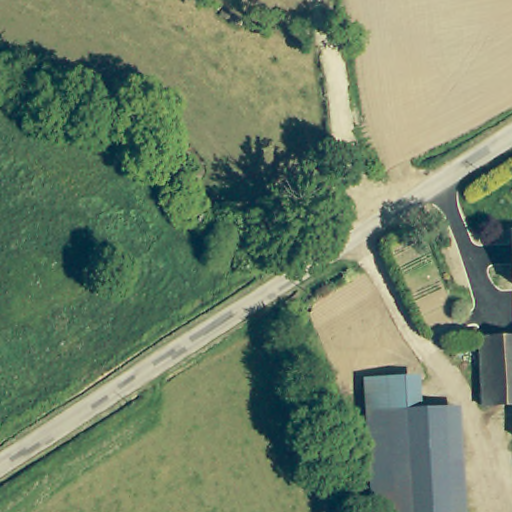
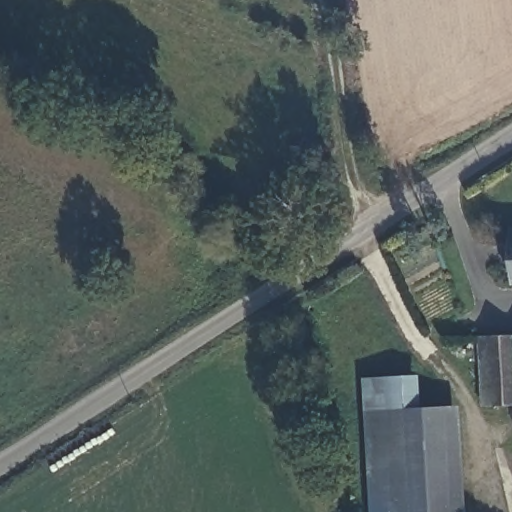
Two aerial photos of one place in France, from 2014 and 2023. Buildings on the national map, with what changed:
unchanged [(493,285),(492,258),(512,256),(512,284),(493,285)]
unchanged [(482,406),(480,335),(512,333),(512,403),(482,406)]
unchanged [(409,381),(409,385),(410,414),(417,414),(448,413),(450,512),(370,512),(368,382),(408,381),(409,381)]

